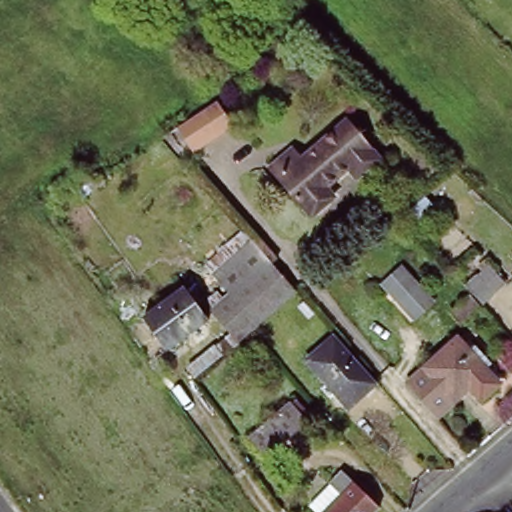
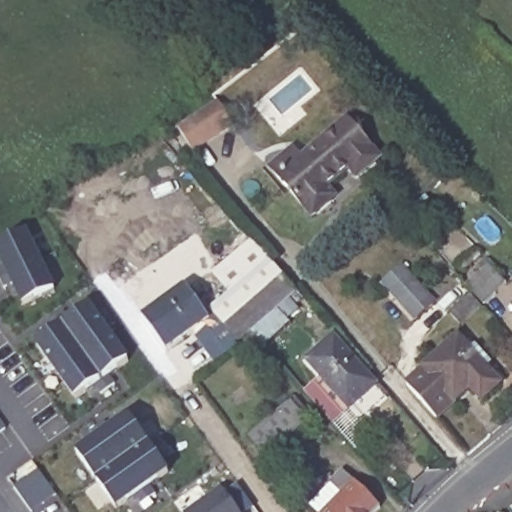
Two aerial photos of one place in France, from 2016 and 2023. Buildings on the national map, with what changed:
unchanged [(219,97),(237,123),(192,153),(178,126),(219,97)]
unchanged [(272,166),(298,146),(307,157),(353,121),(385,160),(362,178),(353,169),(330,187),(338,198),(317,214),(315,216),(282,177),(272,166)]
new [(0,259),(0,245),(27,232),(55,289),(22,305),(0,259)]
unchanged [(207,311),(220,299),(227,293),(210,274),(248,240),(292,288),(247,331),(235,341),(207,311)]
unchanged [(404,261),(435,295),(413,316),(382,281),(404,261)]
unchanged [(488,268),(507,289),(497,298),(478,277),(488,268)]
unchanged [(472,302),(461,290),(476,278),(495,301),(481,313),(472,302)]
unchanged [(180,289),(202,322),(161,352),(138,319),(180,289)]
unchanged [(459,333),(448,321),(470,304),(480,315),(459,333)]
new [(37,346),(90,306),(130,360),(75,400),(37,346)]
unchanged [(310,362),(340,336),(382,385),(352,410),(310,362)]
unchanged [(423,375),(432,366),(462,342),(503,389),(480,410),(467,396),(462,400),(452,408),(423,375)]
unchanged [(297,392),(317,414),(268,456),(250,433),(297,392)]
new [(76,453),(128,415),(168,472),(117,509),(76,453)]
new [(0,418),(7,428),(0,432),(0,418)]
unchanged [(347,495),(337,484),(349,472),(383,507),(379,512),(331,512),(347,495)]
new [(247,512),(188,512),(221,487),(225,494),(237,485),(253,508),(247,512)]

